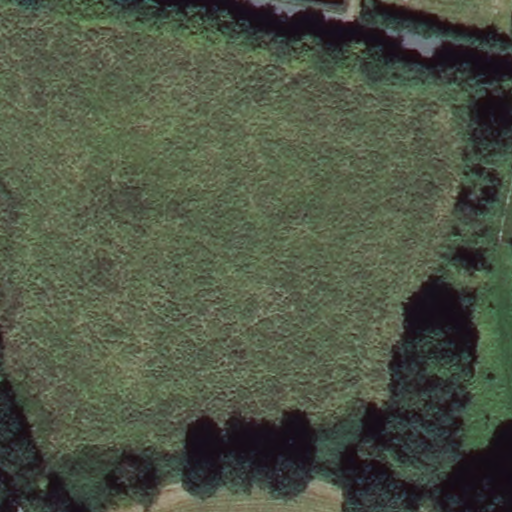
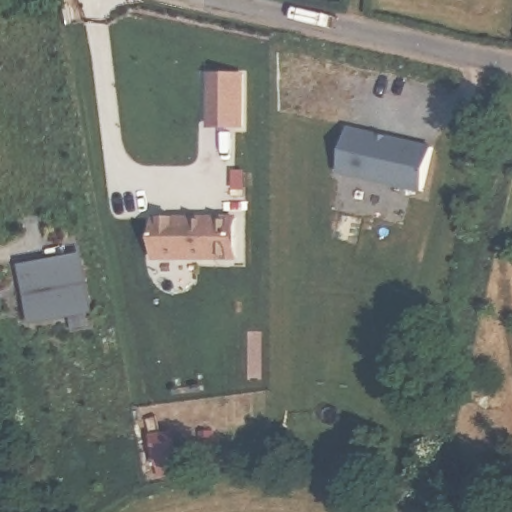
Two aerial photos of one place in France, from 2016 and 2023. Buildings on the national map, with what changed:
new [(209,75),(241,75),(241,127),(209,127),(209,75)]
new [(382,134),(389,136),(433,151),(419,193),(338,166),(352,124),(382,134)]
new [(154,217),(212,217),(212,257),(154,256),(154,217)]
new [(29,308),(23,262),(48,259),(86,254),(87,265),(93,311),(65,314),(31,318),(29,308)]

